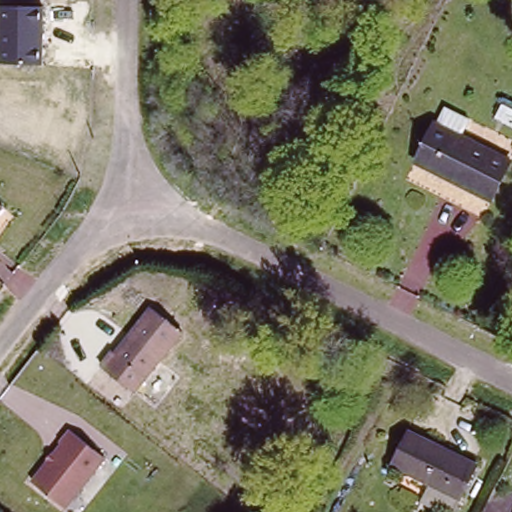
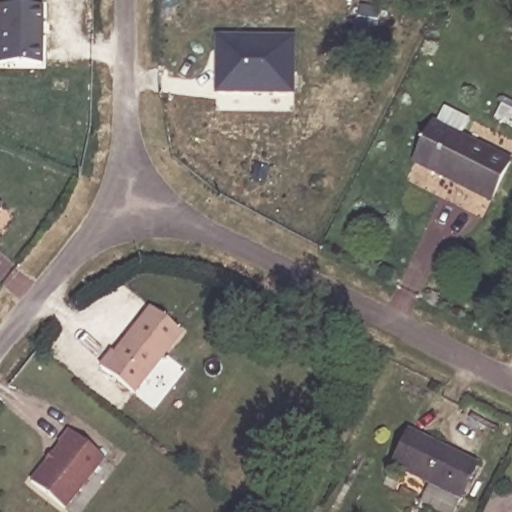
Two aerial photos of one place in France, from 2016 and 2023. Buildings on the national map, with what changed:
new [(362,4),(381,8),(376,31),(358,28),(362,4)]
unchanged [(41,68),(0,63),(0,7),(43,8),(41,68)]
new [(216,35),(296,36),(296,95),(215,94),(216,35)]
unchanged [(492,95),(512,105),(504,119),(484,109),(492,95)]
unchanged [(417,163),(436,126),(507,162),(489,198),(417,163)]
unchanged [(0,213),(0,205),(4,209),(0,213)]
unchanged [(95,364),(108,350),(111,352),(146,306),(175,330),(129,391),(95,364)]
unchanged [(106,459),(65,510),(26,479),(67,428),(106,459)]
unchanged [(390,468),(406,432),(474,465),(456,500),(390,468)]

